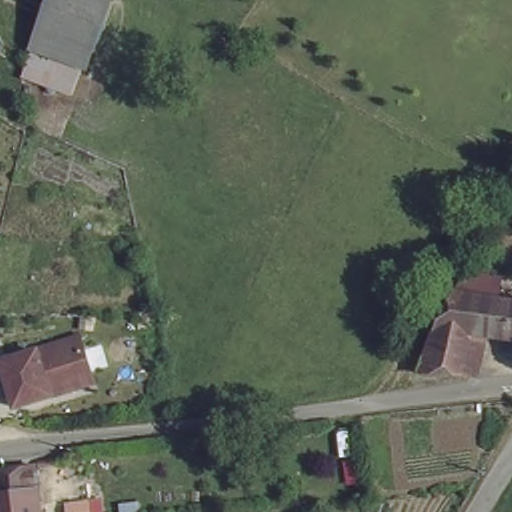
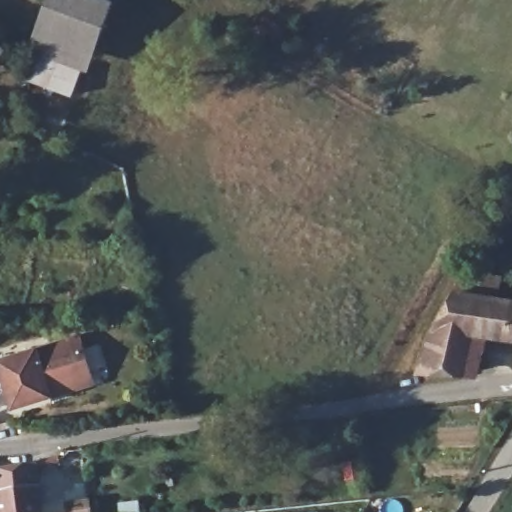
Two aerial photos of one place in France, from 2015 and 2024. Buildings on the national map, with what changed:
unchanged [(48,0),(113,0),(95,51),(38,31),(48,0)]
unchanged [(20,79),(28,53),(38,56),(78,70),(69,97),(34,84),(20,79)]
unchanged [(431,312),(451,282),(512,300),(512,342),(480,334),(454,381),(407,378),(431,312)]
unchanged [(52,393),(16,404),(3,358),(83,335),(94,374),(96,381),(52,393)]
unchanged [(42,512),(0,512),(0,472),(37,466),(42,512)]
unchanged [(87,496),(89,512),(65,512),(63,499),(87,496)]

